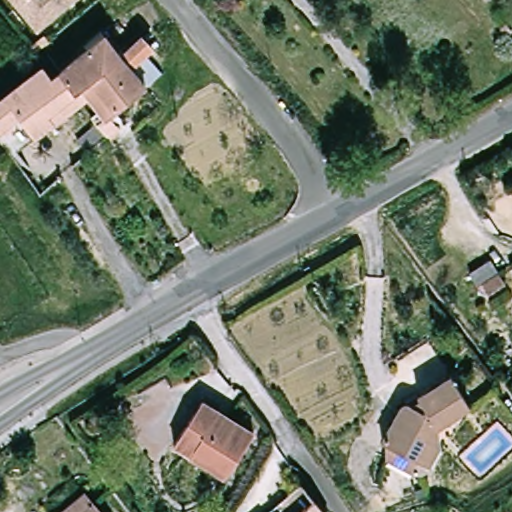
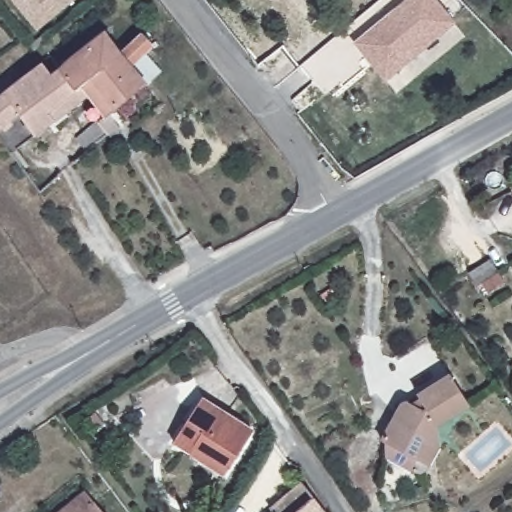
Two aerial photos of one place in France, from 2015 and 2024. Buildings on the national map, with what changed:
unchanged [(37,31),(12,0),(74,0),(37,31)]
new [(402,0),(432,0),(450,21),(382,78),(352,42),(402,0)]
unchanged [(500,29),(505,24),(511,31),(506,36),(500,29)]
unchanged [(119,55),(139,35),(151,48),(142,55),(157,72),(114,110),(123,121),(88,152),(75,139),(94,123),(90,113),(97,108),(85,95),(80,100),(57,71),(102,33),(119,55)]
unchanged [(42,65),(51,77),(57,71),(80,100),(11,154),(0,139),(0,98),(42,65)]
unchanged [(487,294),(481,286),(477,289),(467,275),(488,261),(503,283),(487,294)]
unchanged [(432,468),(429,471),(425,473),(420,473),(414,473),(390,459),(391,446),(384,443),(406,405),(452,377),(471,407),(439,426),(443,448),(432,468)]
unchanged [(194,455),(177,445),(205,400),(255,432),(232,469),(227,477),(194,455)]
unchanged [(302,484),(328,512),(275,512),(273,510),(302,484)]
unchanged [(104,512),(59,512),(88,489),(104,512)]

